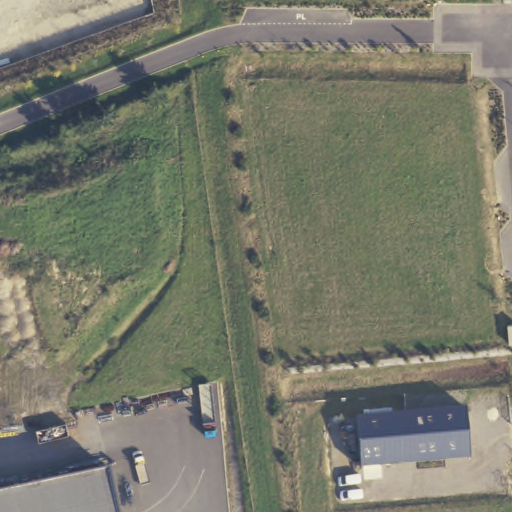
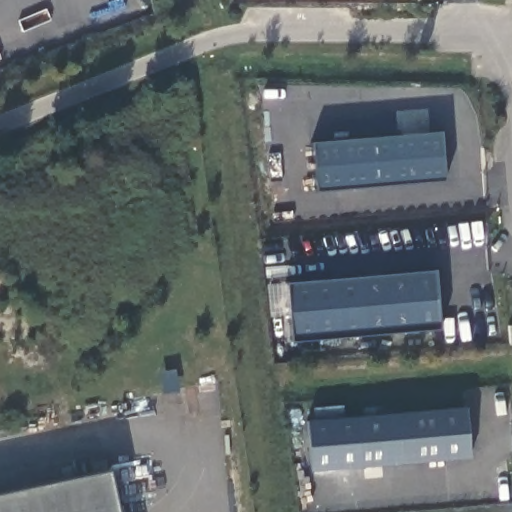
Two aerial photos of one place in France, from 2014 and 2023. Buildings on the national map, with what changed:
new [(316,189),(312,142),(440,131),(445,179),(316,189)]
new [(438,327),(290,339),(285,281),(434,269),(438,327)]
new [(512,344),(511,344),(510,326),(512,326),(512,344)]
unchanged [(360,466),(355,415),(466,407),(471,458),(360,466)]
new [(360,466),(311,471),(307,417),(355,415),(360,466)]
unchanged [(101,470),(110,512),(0,512),(0,493),(101,470)]

